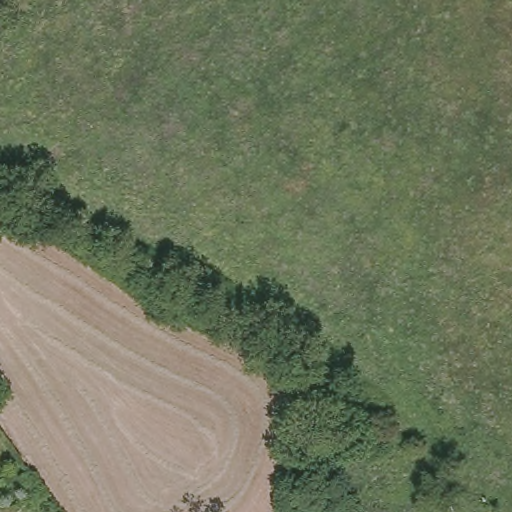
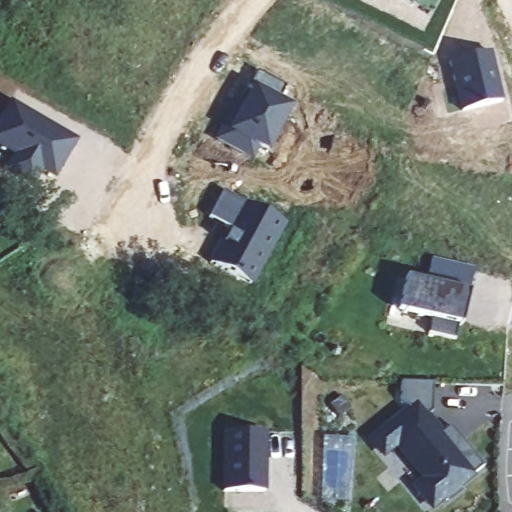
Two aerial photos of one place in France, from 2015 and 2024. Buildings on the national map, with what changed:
new [(412,2),(409,0),(414,0),(412,2)]
new [(503,100),(462,110),(450,59),(492,50),(503,100)]
new [(284,88),(277,100),(291,109),(267,154),(258,149),(252,161),(214,139),(228,112),(235,116),(250,88),(255,74),(284,88)]
new [(55,179),(41,172),(32,186),(6,170),(13,156),(0,148),(0,119),(10,101),(77,141),(55,179)]
new [(285,228),(251,287),(207,262),(226,228),(210,218),(222,192),(285,228)]
new [(466,293),(425,283),(430,260),(472,271),(466,293)]
new [(405,278),(466,293),(460,326),(455,326),(452,340),(427,335),(431,319),(397,312),(405,278)]
new [(400,400),(401,382),(433,383),(432,412),(426,417),(445,432),(451,426),(462,441),(483,467),(459,486),(461,489),(446,501),(443,498),(432,507),(417,489),(428,478),(400,442),(383,455),(371,440),(408,410),(400,400)]
new [(266,491),(226,490),(228,431),(267,432),(266,491)]

